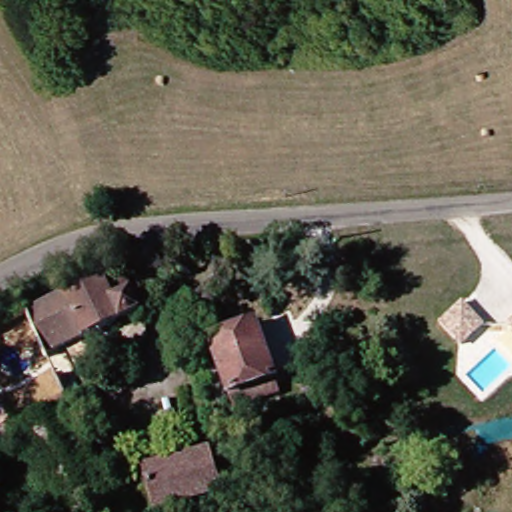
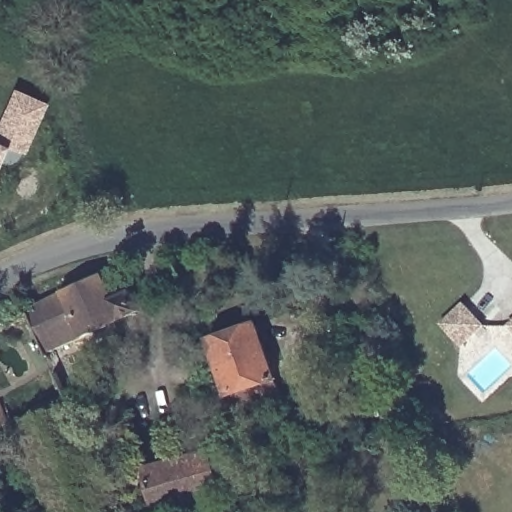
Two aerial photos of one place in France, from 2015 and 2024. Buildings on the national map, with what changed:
new [(45,105),(22,156),(20,159),(15,162),(12,163),(6,164),(0,162),(0,163),(0,120),(13,91),(45,105)]
unchanged [(30,320),(121,277),(142,321),(85,348),(49,364),(39,340),(30,320)]
unchanged [(483,325),(470,338),(462,346),(441,325),(457,309),(462,304),(483,325)]
unchanged [(508,325),(512,321),(512,328),(508,325)]
unchanged [(234,393),(214,339),(260,324),(281,392),(267,397),(239,406),(234,393)]
unchanged [(15,443),(72,418),(101,488),(46,512),(15,443)]
unchanged [(219,492),(154,511),(142,473),(208,452),(219,492)]
unchanged [(46,512),(101,488),(113,512),(46,512)]

